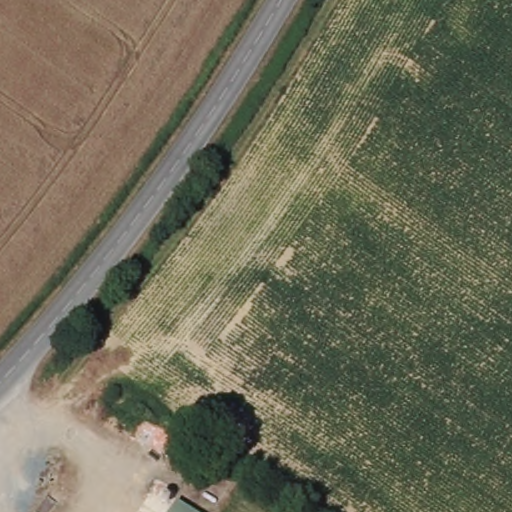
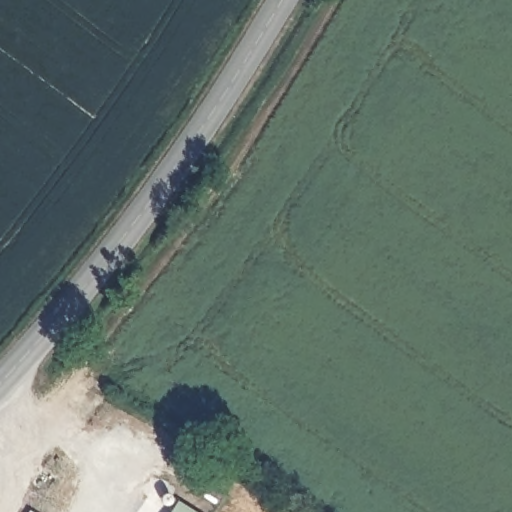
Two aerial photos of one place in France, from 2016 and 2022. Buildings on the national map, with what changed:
unchanged [(170,512),(179,499),(200,512),(170,512)]

